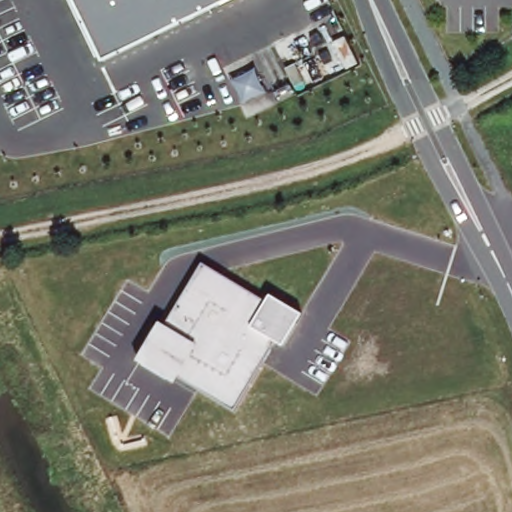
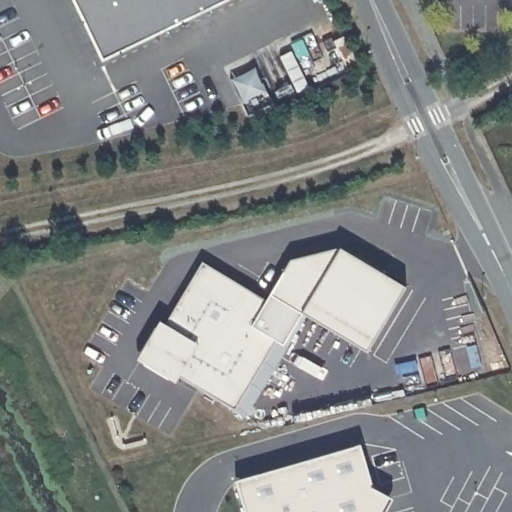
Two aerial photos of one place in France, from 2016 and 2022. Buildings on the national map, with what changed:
unchanged [(226,0),(102,60),(73,0),(226,0)]
new [(292,259),(340,247),(406,285),(367,349),(308,312),(303,309),(301,312),(271,295),(292,259)]
unchanged [(282,344),(275,340),(234,408),(178,376),(175,381),(138,358),(160,320),(165,324),(203,263),(268,300),(271,295),(301,312),(282,344)]
new [(360,443),(380,512),(244,512),(234,480),(360,443)]

